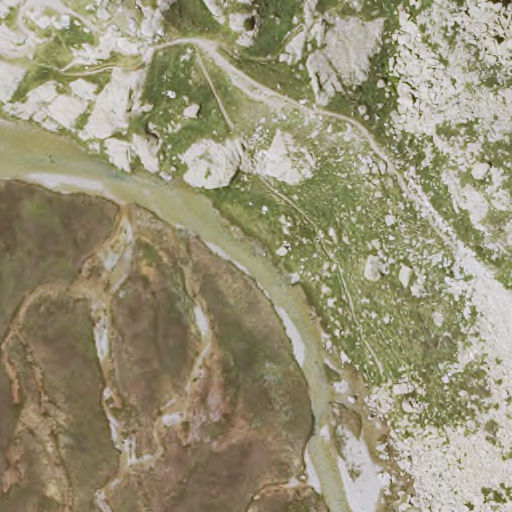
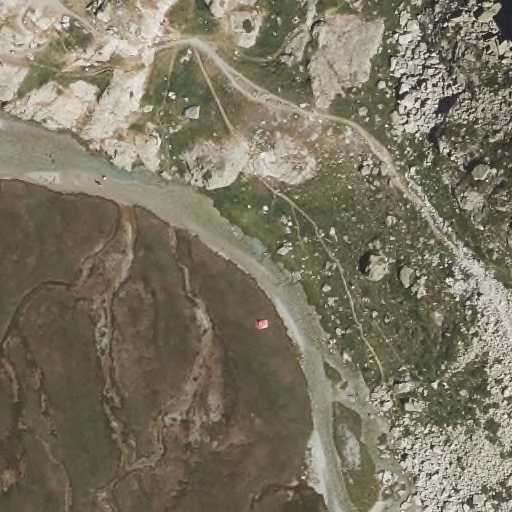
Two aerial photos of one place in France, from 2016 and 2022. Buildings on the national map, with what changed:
[]

